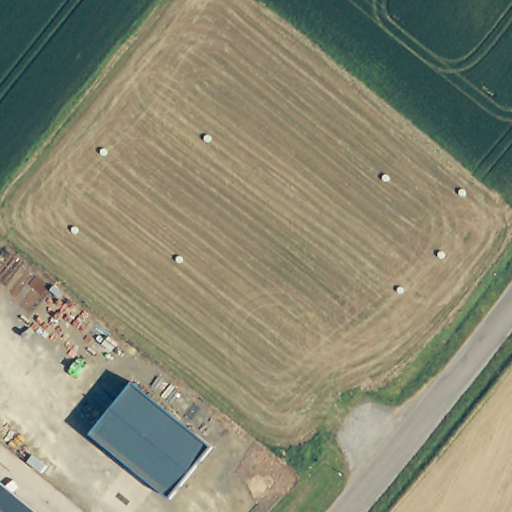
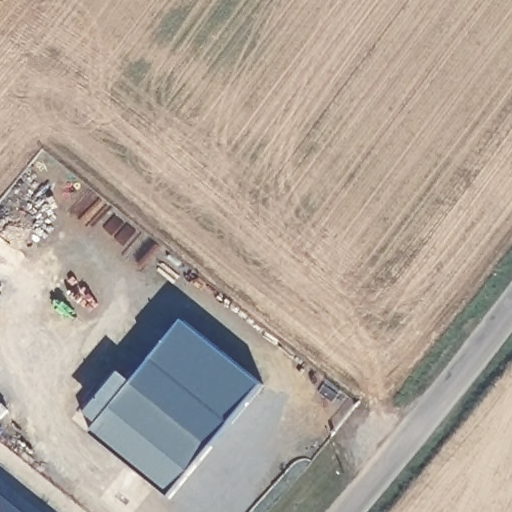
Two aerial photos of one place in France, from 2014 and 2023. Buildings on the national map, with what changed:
new [(264,384),(213,446),(134,382),(183,320),(264,384)]
new [(85,413),(119,370),(134,382),(99,424),(85,413)]
unchanged [(213,446),(170,498),(91,434),(134,382),(213,446)]
new [(0,492),(25,512),(0,512),(0,492)]
demolished [(0,504),(10,512),(0,512),(0,504)]

